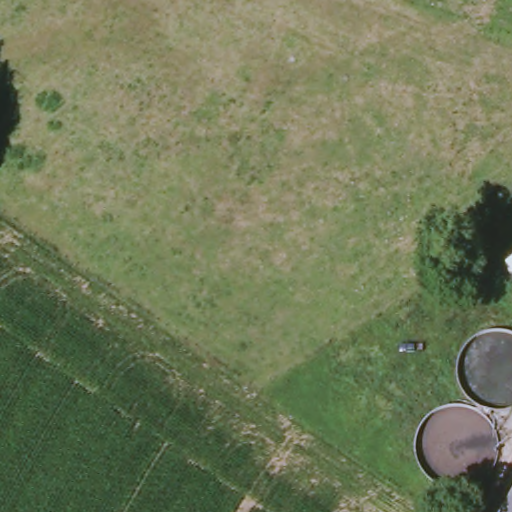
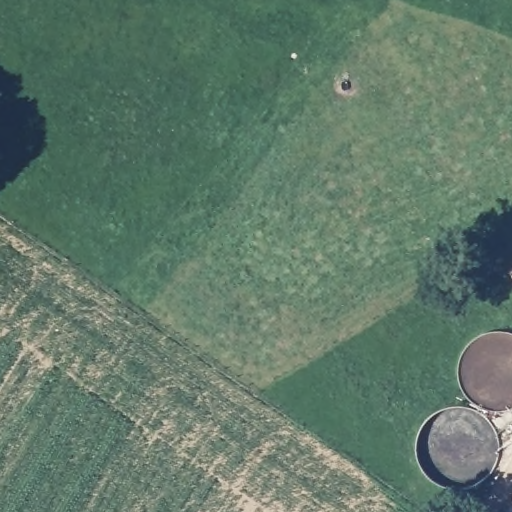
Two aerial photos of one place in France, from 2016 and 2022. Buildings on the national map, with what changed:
unchanged [(509,269),(512,266),(512,273),(509,269)]
unchanged [(512,491),(512,512),(499,512),(512,491)]

